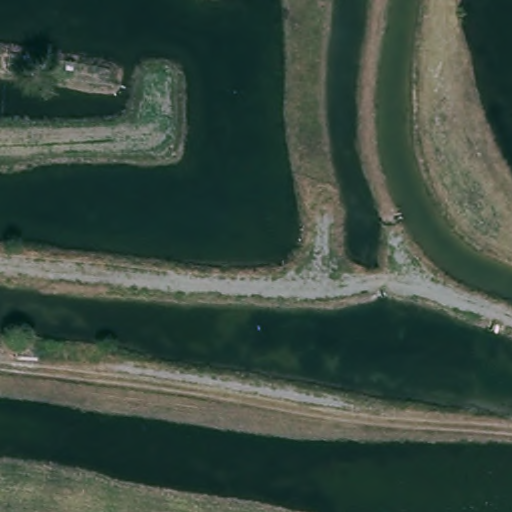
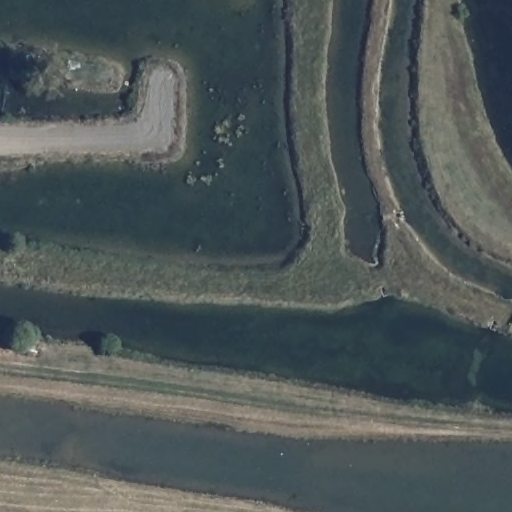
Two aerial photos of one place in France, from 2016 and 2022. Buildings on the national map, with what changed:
[]

